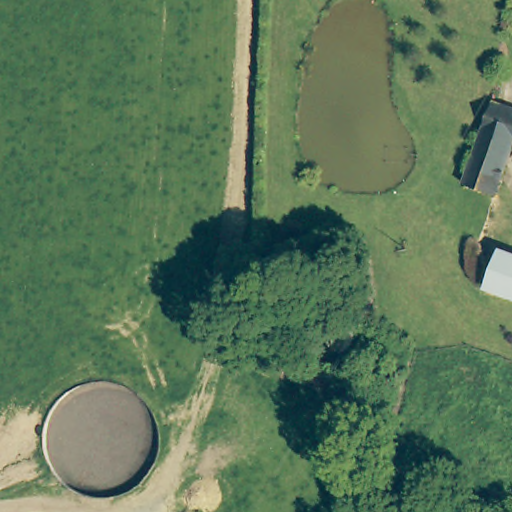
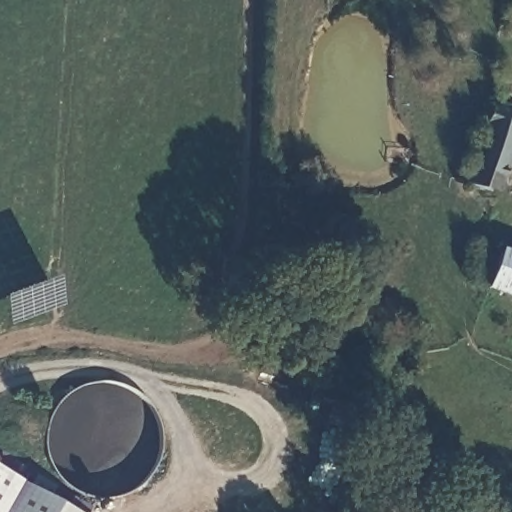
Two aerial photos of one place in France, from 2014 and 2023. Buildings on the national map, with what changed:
unchanged [(512,168),(500,200),(460,186),(493,100),(512,107),(512,168)]
unchanged [(499,276),(509,251),(512,253),(512,293),(495,287),(499,276)]
new [(75,512),(0,512),(0,468),(75,512)]

